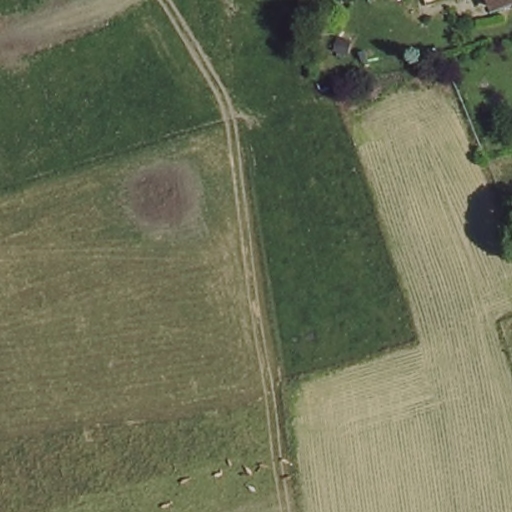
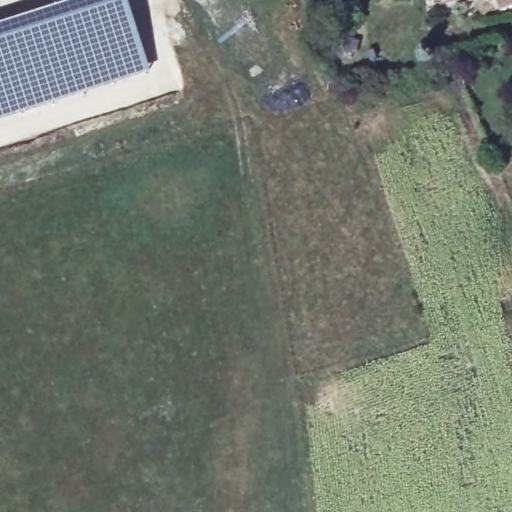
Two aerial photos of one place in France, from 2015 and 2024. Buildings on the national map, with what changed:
new [(150,71),(0,121),(0,22),(68,0),(128,0),(150,71)]
unchanged [(437,7),(434,0),(455,0),(437,7)]
unchanged [(504,8),(501,0),(512,0),(512,5),(504,8)]

